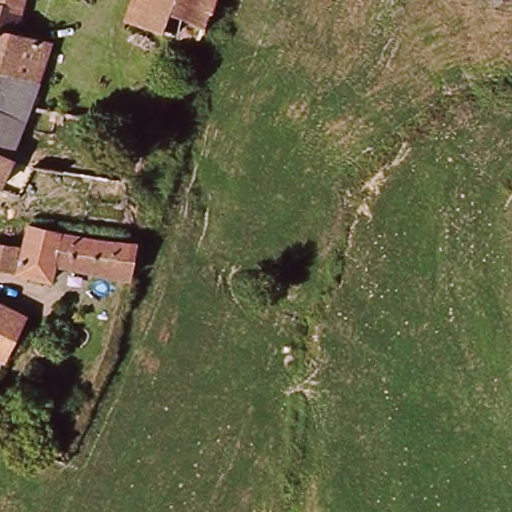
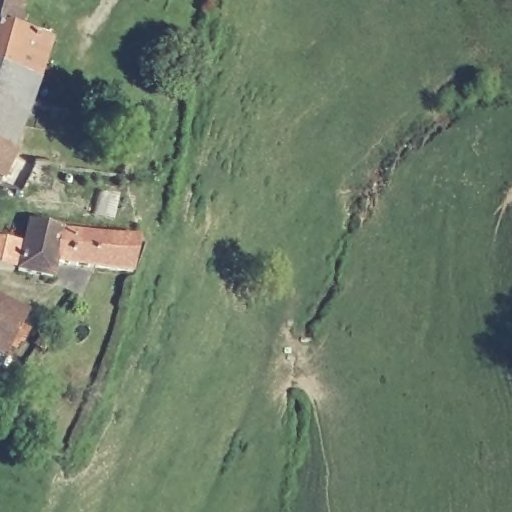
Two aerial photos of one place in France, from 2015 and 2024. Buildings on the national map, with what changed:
unchanged [(24,0),(21,9),(15,33),(51,42),(37,81),(0,70),(0,0),(24,0)]
demolished [(129,15),(134,0),(213,0),(200,39),(129,15)]
unchanged [(37,81),(29,107),(22,123),(0,113),(0,70),(37,81)]
unchanged [(22,123),(10,154),(13,156),(12,161),(15,162),(10,176),(5,175),(2,185),(0,185),(0,113),(22,123)]
unchanged [(62,233),(54,264),(51,280),(19,273),(23,253),(21,253),(25,228),(28,229),(29,225),(62,233)]
unchanged [(135,279),(54,264),(62,233),(104,240),(134,243),(139,243),(135,279)]
unchanged [(12,273),(0,271),(0,245),(17,248),(16,252),(12,273)]
unchanged [(36,316),(18,354),(11,352),(0,372),(0,298),(36,316)]

